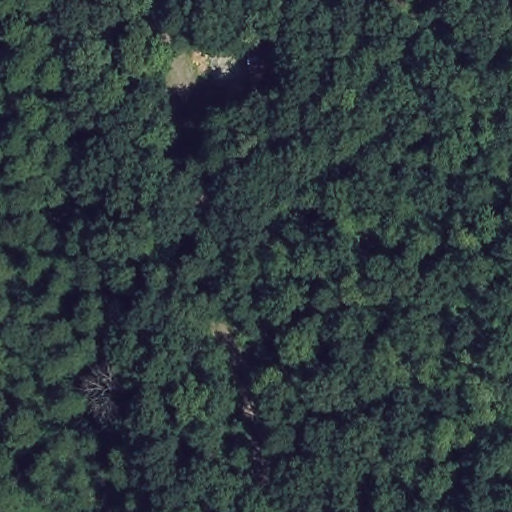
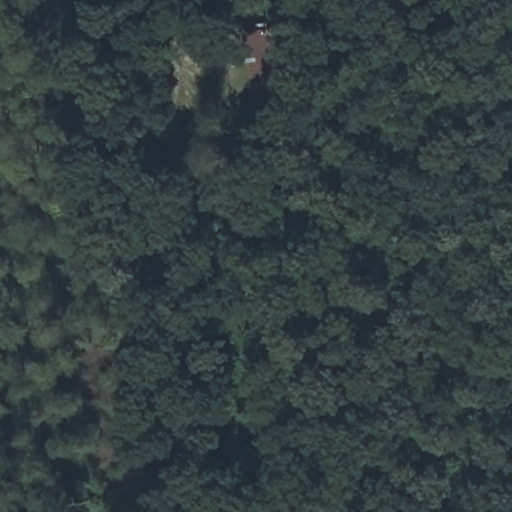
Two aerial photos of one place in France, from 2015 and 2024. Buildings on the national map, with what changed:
unchanged [(299,27),(303,52),(279,54),(283,85),(309,82),(310,107),(256,110),(246,34),(299,27)]

